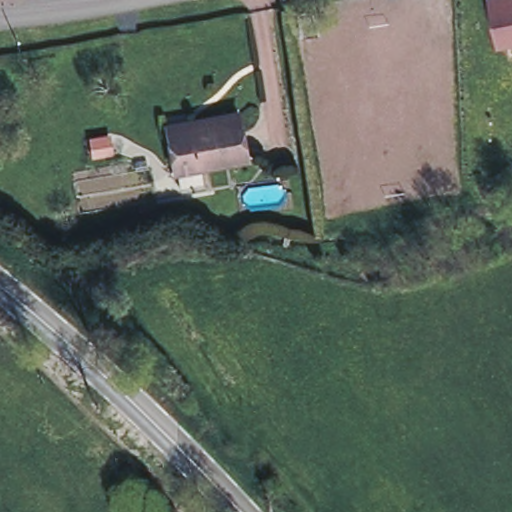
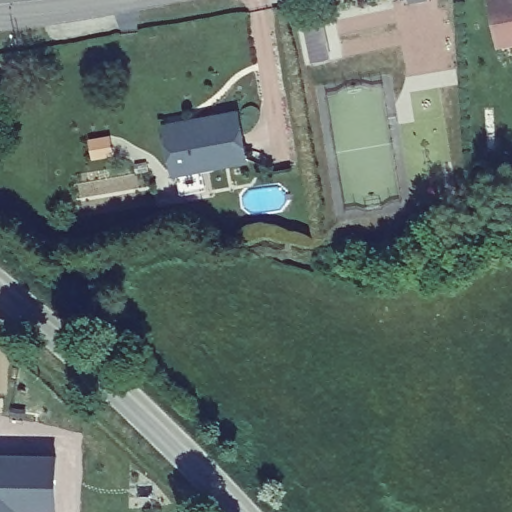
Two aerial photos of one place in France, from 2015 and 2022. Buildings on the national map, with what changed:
unchanged [(512,41),(498,44),(490,0),(512,0),(512,41)]
new [(322,22),(330,59),(310,63),(302,27),(322,22)]
unchanged [(198,174),(197,169),(174,172),(166,131),(165,126),(203,119),(238,112),(247,160),(211,166),(212,171),(198,174)]
new [(108,137),(111,156),(93,159),(90,141),(108,137)]
new [(0,512),(0,452),(58,453),(58,512),(0,512)]

